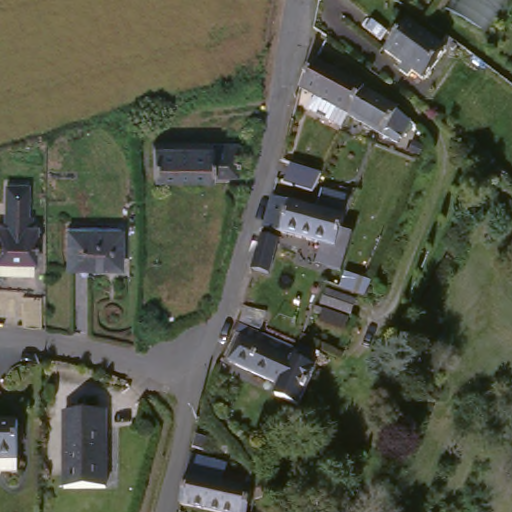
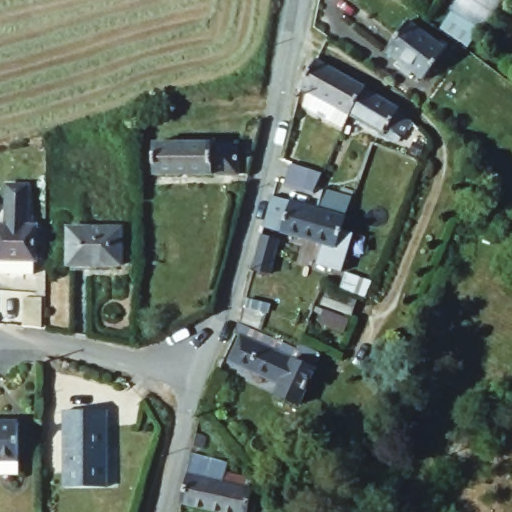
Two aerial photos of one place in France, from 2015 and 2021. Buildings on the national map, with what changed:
unchanged [(487,37),(448,14),(456,0),(509,0),(487,37)]
unchanged [(412,19),(449,47),(427,77),(389,48),(412,19)]
unchanged [(351,110),(341,105),(333,117),(311,105),(319,92),(303,82),(317,55),(366,83),(365,85),(351,110)]
unchanged [(400,107),(413,117),(413,120),(403,134),(402,134),(400,132),(393,129),(389,132),(384,130),(352,111),(351,110),(365,85),(402,105),(400,107)]
unchanged [(234,144),(234,175),(150,176),(150,144),(234,144)]
unchanged [(282,184),(288,165),(319,175),(311,192),(282,184)]
unchanged [(0,222),(8,222),(9,186),(31,185),(31,220),(38,220),(37,261),(0,260),(0,222)]
unchanged [(319,191),(348,199),(342,215),(315,207),(319,191)]
unchanged [(334,248),(261,227),(269,196),(344,217),(334,248)]
unchanged [(122,224),(122,261),(68,262),(68,224),(122,224)]
unchanged [(263,229),(280,234),(271,268),(254,263),(263,229)]
unchanged [(329,285),(358,295),(353,310),(323,299),(329,285)]
unchanged [(23,295),(41,295),(41,325),(22,323),(23,295)]
unchanged [(244,306),(268,312),(264,328),(240,322),(244,306)]
unchanged [(323,353),(301,403),(278,393),(282,382),(231,360),(242,335),(236,332),(239,323),(243,325),(259,331),(256,340),(272,346),(276,337),(300,347),(302,345),(323,353)]
unchanged [(64,408),(107,408),(107,487),(64,487),(64,408)]
unchanged [(14,460),(0,460),(0,423),(14,422),(14,460)]
unchanged [(197,432),(208,436),(206,448),(194,446),(197,432)]
unchanged [(192,454),(231,462),(228,472),(255,477),(254,482),(259,483),(258,489),(256,489),(251,512),(217,512),(181,504),(192,454)]
unchanged [(276,490),(259,499),(261,488),(267,483),(269,482),(276,490)]

